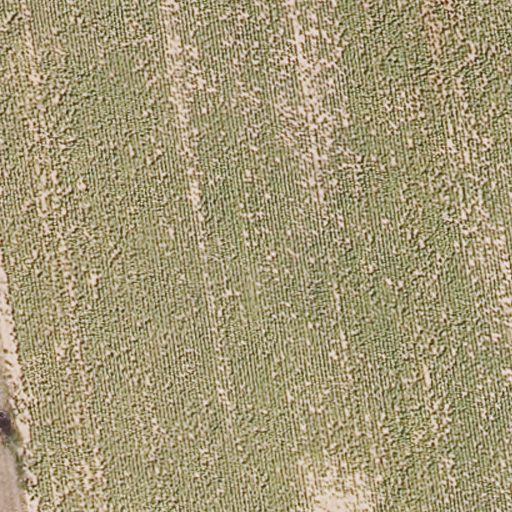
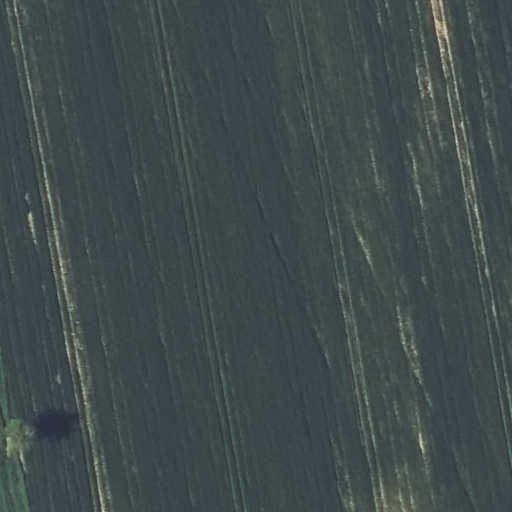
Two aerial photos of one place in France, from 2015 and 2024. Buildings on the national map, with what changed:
[]

